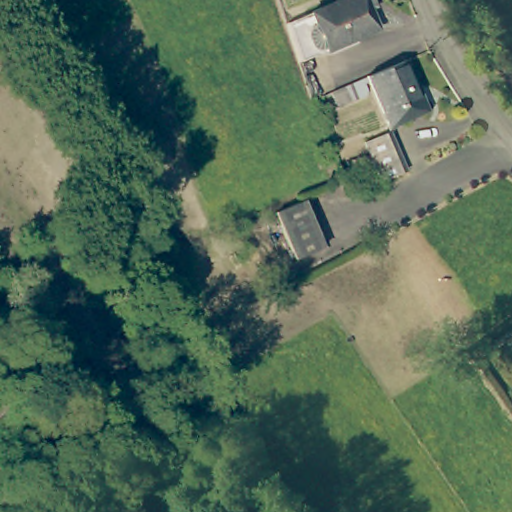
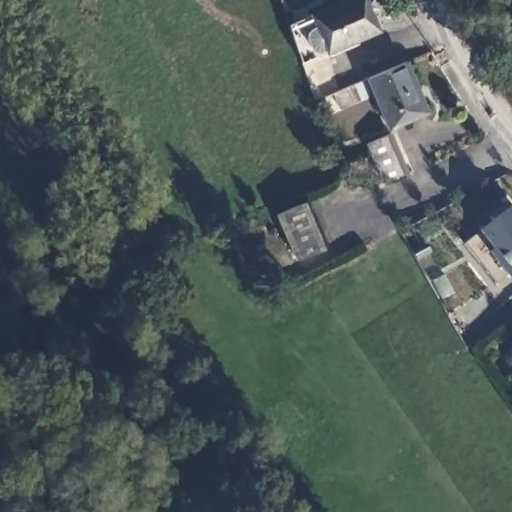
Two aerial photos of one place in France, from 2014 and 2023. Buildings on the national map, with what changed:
unchanged [(347,0),(369,0),(381,29),(304,62),(291,24),(347,0)]
unchanged [(430,105),(389,121),(370,72),(410,55),(430,105)]
unchanged [(403,165),(397,167),(379,174),(366,135),(389,126),(403,165)]
unchanged [(325,246),(298,258),(276,213),(305,201),(325,246)]
new [(490,255),(494,251),(478,231),(510,205),(512,208),(512,282),(490,255)]

